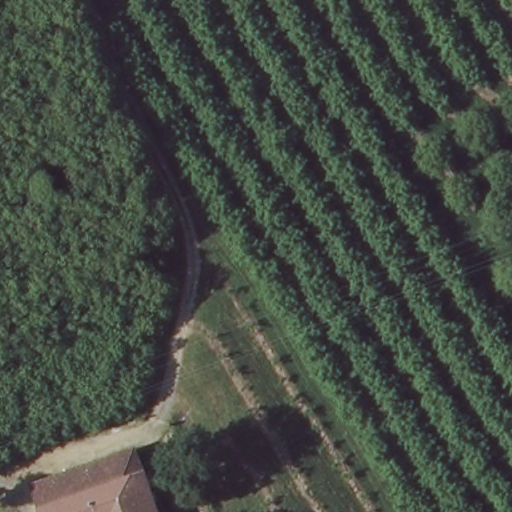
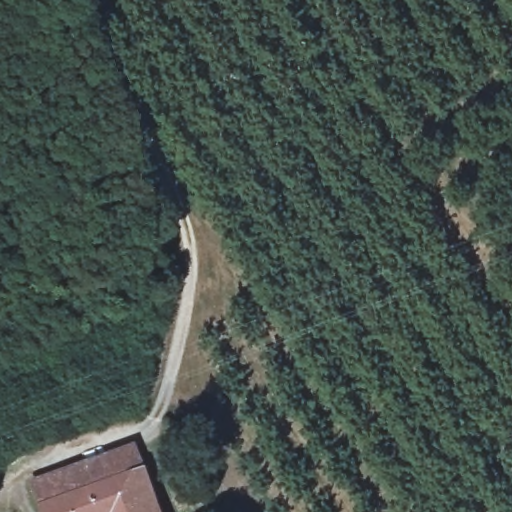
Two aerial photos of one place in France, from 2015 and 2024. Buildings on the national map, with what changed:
unchanged [(26,485),(128,448),(136,470),(35,507),(26,485)]
unchanged [(148,502),(152,512),(36,512),(35,507),(136,470),(148,502)]

